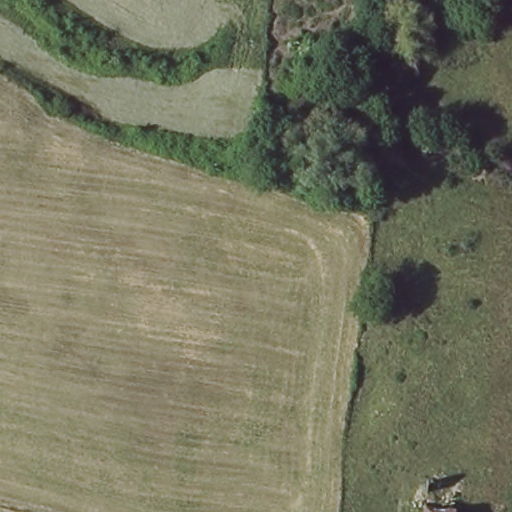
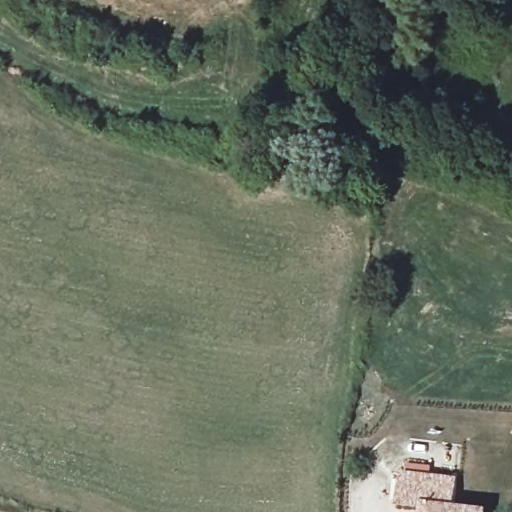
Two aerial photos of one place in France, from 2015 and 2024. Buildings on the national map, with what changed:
new [(396,509),(400,474),(457,481),(452,509),(480,512),(431,512),(425,512),(396,509)]

